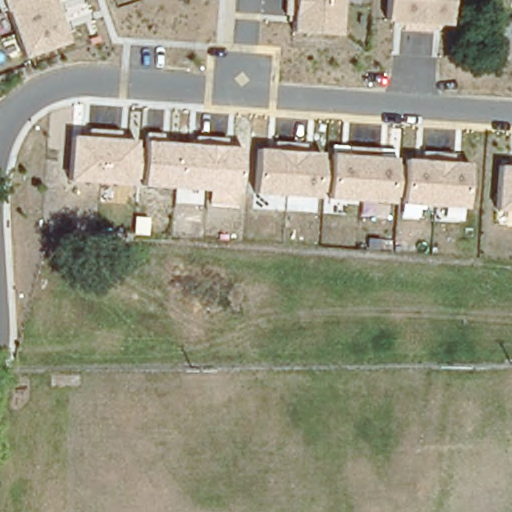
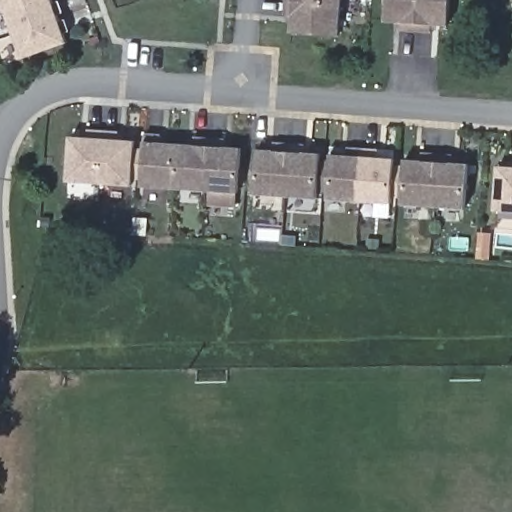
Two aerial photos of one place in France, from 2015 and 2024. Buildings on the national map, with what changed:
unchanged [(24,59),(3,0),(54,0),(68,43),(24,59)]
unchanged [(291,34),(294,0),(343,0),(338,36),(291,34)]
unchanged [(432,24),(432,34),(400,31),(399,22),(385,21),(385,0),(451,0),(449,25),(432,24)]
unchanged [(69,181),(72,137),(242,148),(239,192),(69,181)]
unchanged [(253,195),(257,150),(471,164),(467,209),(253,195)]
unchanged [(497,212),(498,165),(512,166),(512,213),(497,212)]

